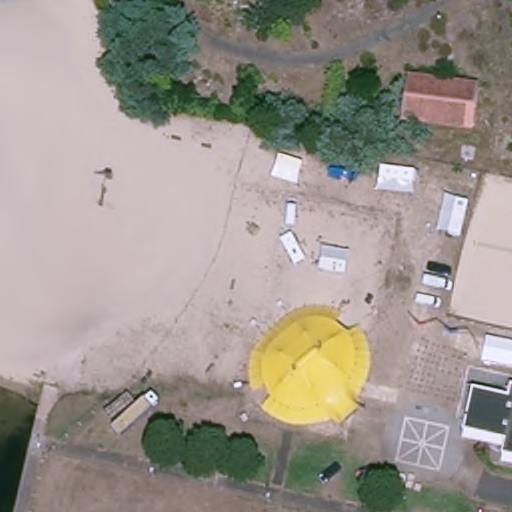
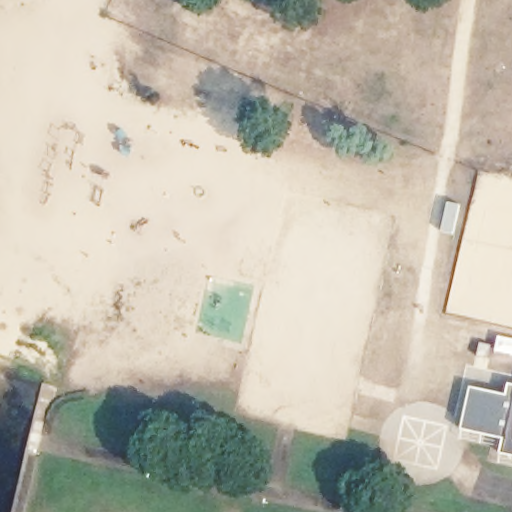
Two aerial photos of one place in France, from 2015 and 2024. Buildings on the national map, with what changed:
demolished [(409,116),(415,78),(473,87),(467,124),(409,116)]
unchanged [(511,393),(512,389),(512,456),(504,454),(507,439),(464,429),(474,386),(511,393)]

